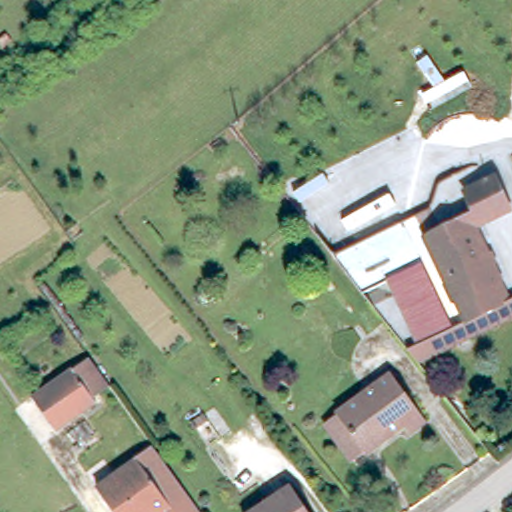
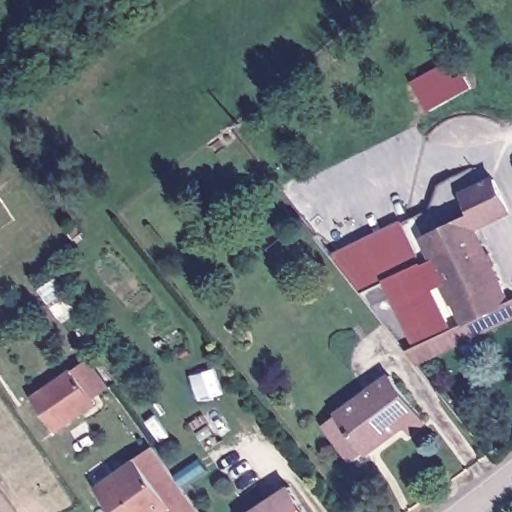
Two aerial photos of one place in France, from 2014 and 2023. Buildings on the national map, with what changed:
new [(456,77),(465,72),(473,87),(428,111),(411,81),(448,61),(456,77)]
unchanged [(342,270),(331,256),(331,255),(358,242),(430,206),(441,227),(473,211),(463,191),(494,175),(510,207),(474,225),(511,297),(512,297),(512,314),(415,363),(398,341),(342,270)]
unchanged [(28,395),(42,384),(85,356),(104,383),(87,395),(89,398),(64,416),(50,425),(28,395)]
unchanged [(385,369),(421,415),(406,427),(399,418),(389,425),(359,389),(385,369)]
unchanged [(331,434),(320,420),(332,410),(359,389),(389,425),(349,458),(331,434)]
unchanged [(137,458),(136,455),(152,445),(200,512),(169,512),(166,508),(161,512),(117,512),(99,483),(101,481),(137,458)]
unchanged [(286,486),(303,512),(248,512),(286,486)]

